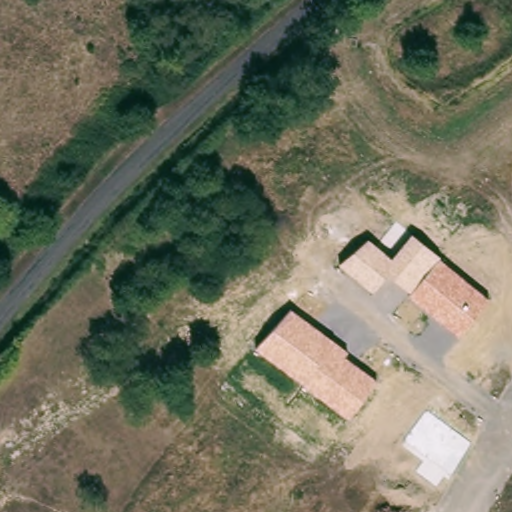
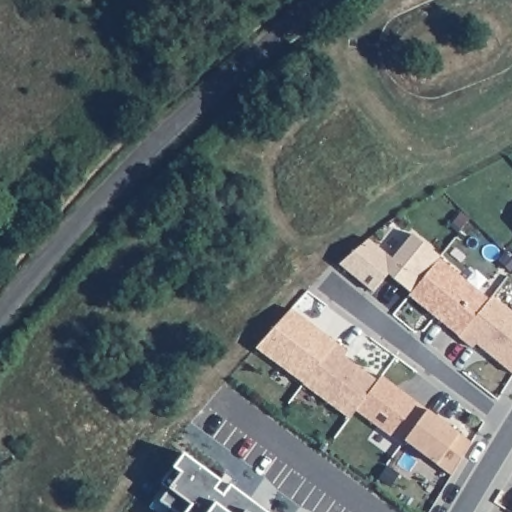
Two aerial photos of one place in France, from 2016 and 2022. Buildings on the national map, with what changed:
unchanged [(387,276),(373,293),(337,265),(369,240),(392,258),(412,232),(489,299),(458,336),(387,276)]
new [(512,312),(512,371),(478,343),(474,348),(458,336),(489,299),(492,296),(512,312)]
unchanged [(254,348),(292,308),(349,352),(345,357),(377,380),(349,420),(254,348)]
new [(355,410),(377,380),(380,375),(428,409),(406,440),(403,443),(355,410)]
new [(438,463),(406,440),(428,409),(460,433),(472,443),(453,473),(438,463)]
new [(175,467),(184,454),(267,512),(176,512),(161,502),(171,488),(182,472),(175,467)]

